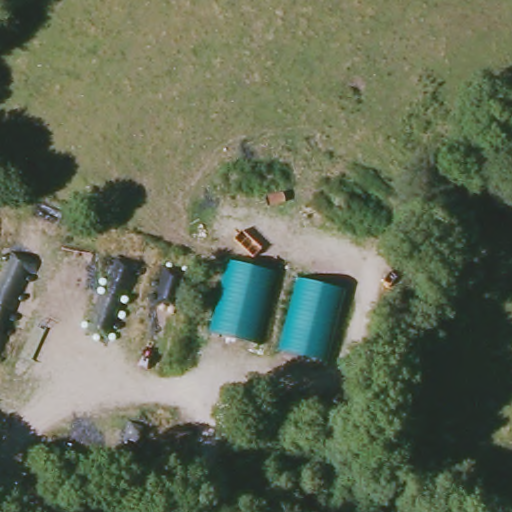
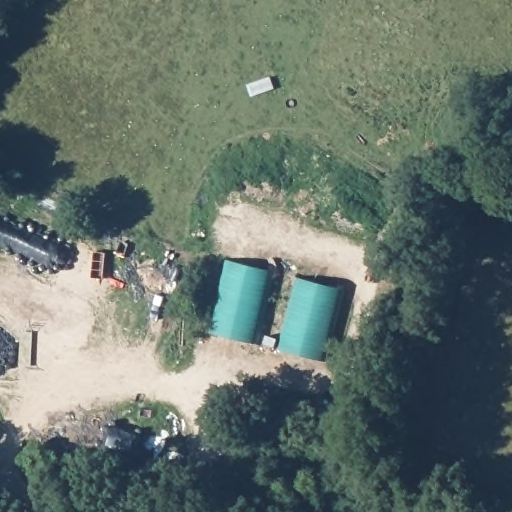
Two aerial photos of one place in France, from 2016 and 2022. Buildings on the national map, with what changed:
unchanged [(230,261),(270,271),(252,341),(210,331),(230,261)]
unchanged [(298,278),(345,290),(326,361),(280,348),(298,278)]

